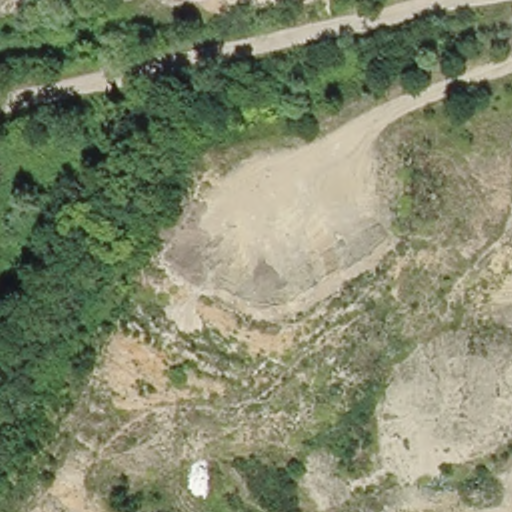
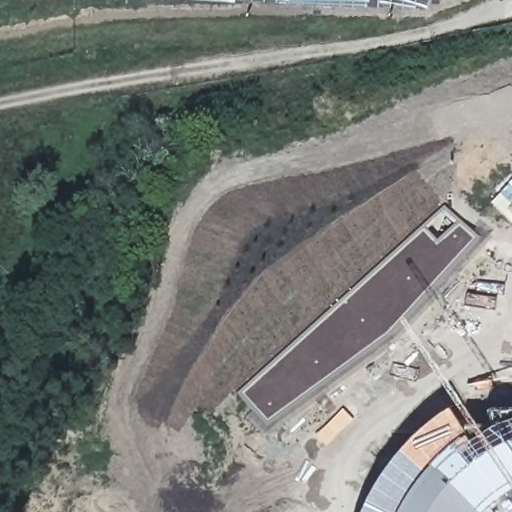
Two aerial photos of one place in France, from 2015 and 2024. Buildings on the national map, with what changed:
new [(235,395),(441,207),(475,240),(387,333),(263,425),(235,395)]
new [(485,431),(503,423),(512,421),(512,512),(354,512),(357,503),(368,485),(380,467),(394,450),(409,435),(425,422),(438,413),(460,445),(467,440),(485,431)]

